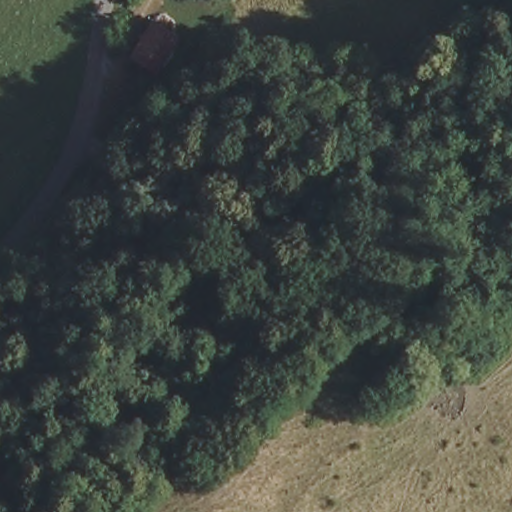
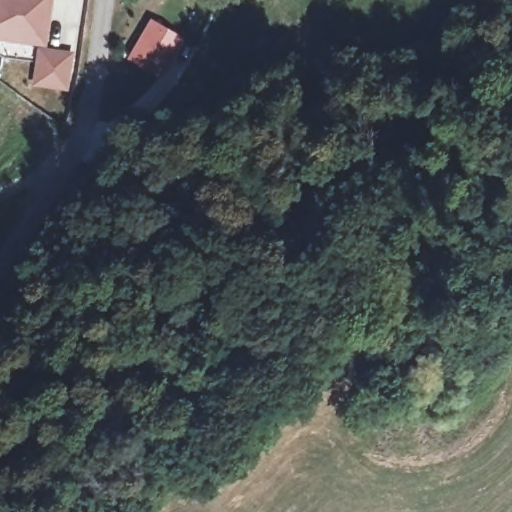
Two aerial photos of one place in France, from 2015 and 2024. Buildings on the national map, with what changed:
new [(67,90),(30,83),(37,44),(0,39),(0,0),(52,0),(45,46),(73,51),(67,90)]
unchanged [(179,34),(159,74),(130,58),(154,19),(179,34)]

